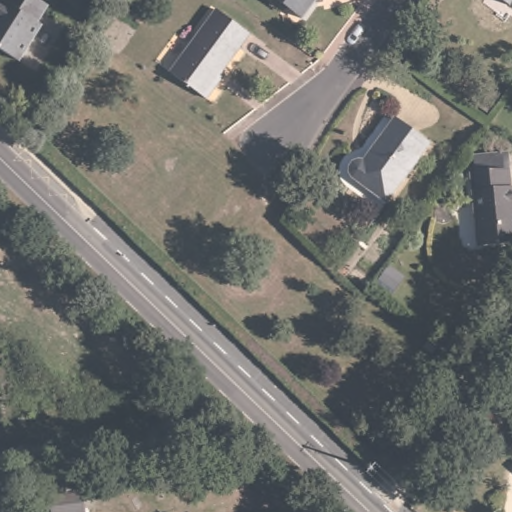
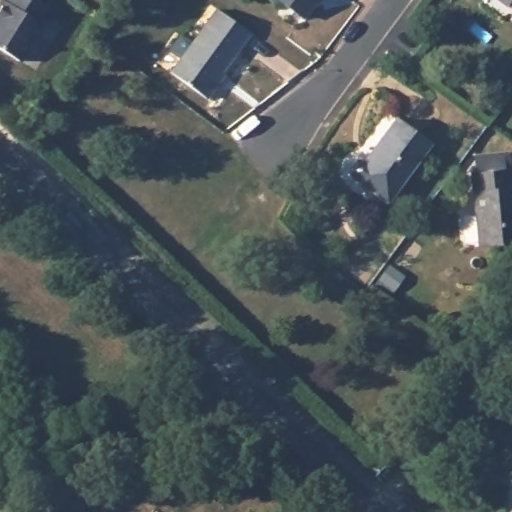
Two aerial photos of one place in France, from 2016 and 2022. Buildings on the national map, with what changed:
unchanged [(40,21),(45,24),(20,60),(0,46),(0,3),(2,0),(44,0),(51,4),(40,21)]
unchanged [(271,0),(285,0),(280,7),(271,0)]
unchanged [(285,0),(309,0),(300,12),(285,0)]
unchanged [(504,0),(512,0),(512,6),(504,0)]
unchanged [(221,77),(226,80),(212,99),(175,71),(220,12),(251,37),(221,77)]
unchanged [(432,147),(387,206),(351,180),(350,170),(355,162),(366,163),(398,119),(432,147)]
unchanged [(512,199),(512,231),(478,234),(470,165),(507,159),(512,199)]
unchanged [(73,470),(75,492),(86,491),(88,512),(51,512),(49,493),(38,494),(33,474),(73,470)]

